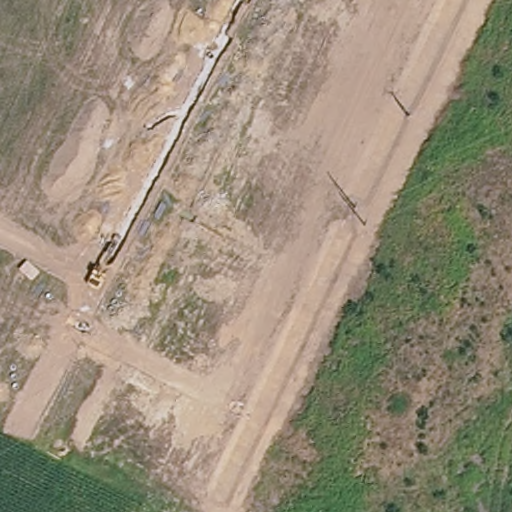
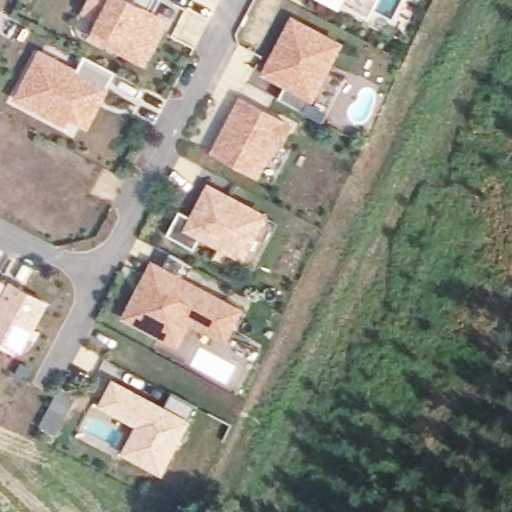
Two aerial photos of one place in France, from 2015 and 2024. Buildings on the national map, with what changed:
new [(155,9),(170,18),(146,65),(91,37),(95,27),(98,20),(83,11),(88,0),(159,0),(155,9)]
new [(305,109),(281,97),(286,86),(262,73),(291,14),(346,42),(316,101),(310,98),(305,109)]
new [(116,70),(108,86),(111,88),(93,123),(90,128),(71,117),(65,125),(15,97),(41,49),(79,68),(85,54),(116,70)]
new [(213,153),(242,96),(296,124),(286,145),(293,149),(275,182),(260,178),(213,153)]
new [(194,248),(169,234),(180,211),(191,217),(210,182),(271,215),(246,262),(200,238),(194,248)]
new [(191,324),(180,346),(124,318),(153,259),(166,266),(173,254),(194,265),(188,277),(245,307),(229,343),(191,324)]
new [(11,279),(51,300),(24,352),(0,340),(0,278),(9,283),(11,279)]
new [(123,455),(138,426),(100,405),(114,376),(166,404),(172,393),(195,406),(189,417),(194,419),(164,476),(123,455)]

